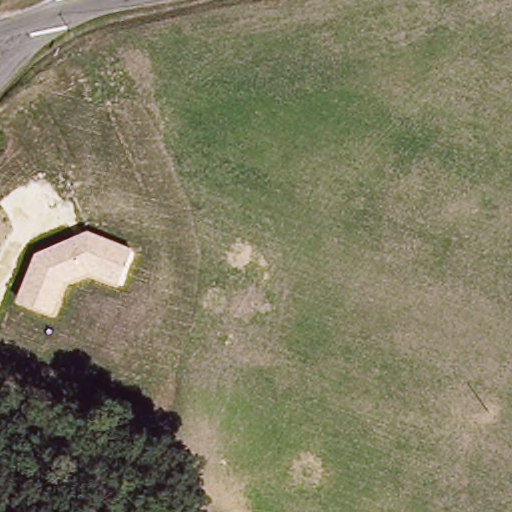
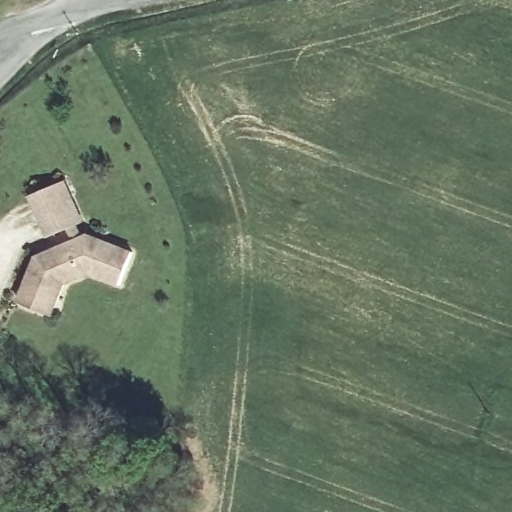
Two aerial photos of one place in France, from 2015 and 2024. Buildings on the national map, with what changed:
new [(67,179),(85,221),(79,224),(83,235),(71,241),(67,230),(48,238),(31,196),(67,179)]
unchanged [(89,233),(134,251),(121,288),(90,276),(67,286),(55,316),(19,303),(36,256),(89,233)]

